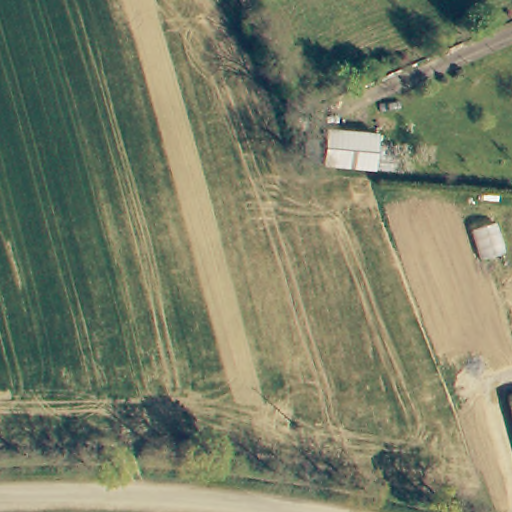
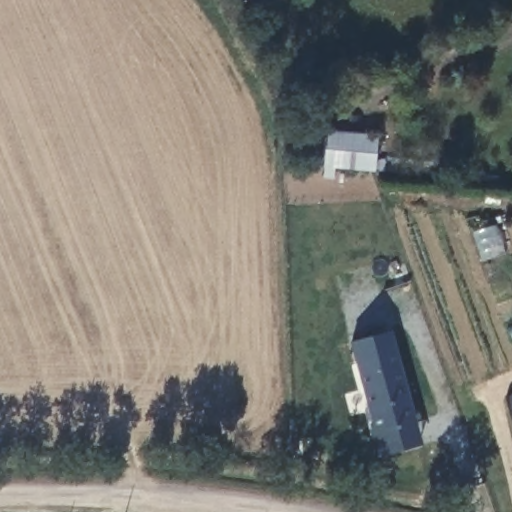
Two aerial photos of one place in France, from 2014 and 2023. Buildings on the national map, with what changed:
unchanged [(370,176),(321,171),(326,139),(373,143),(370,176)]
new [(377,435),(356,363),(350,343),(389,331),(395,351),(416,423),(377,435)]
new [(416,423),(423,448),(385,459),(377,435),(416,423)]

